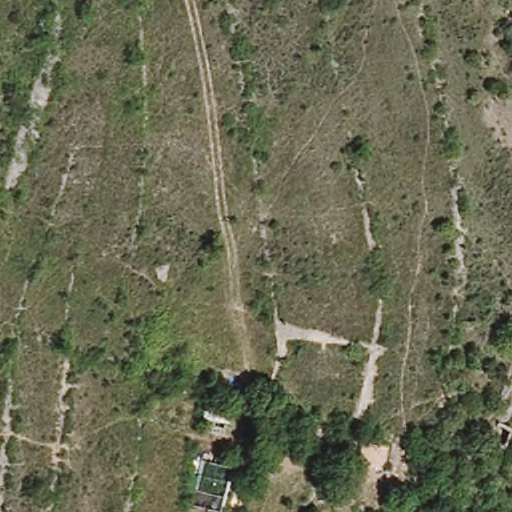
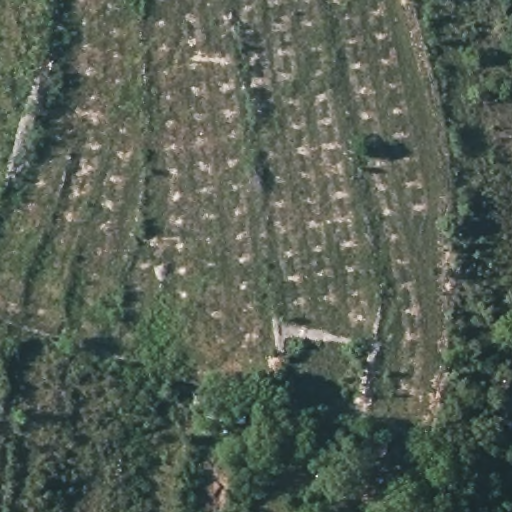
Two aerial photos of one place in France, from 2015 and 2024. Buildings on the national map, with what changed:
unchanged [(232,475),(224,511),(197,503),(208,466),(232,475)]

